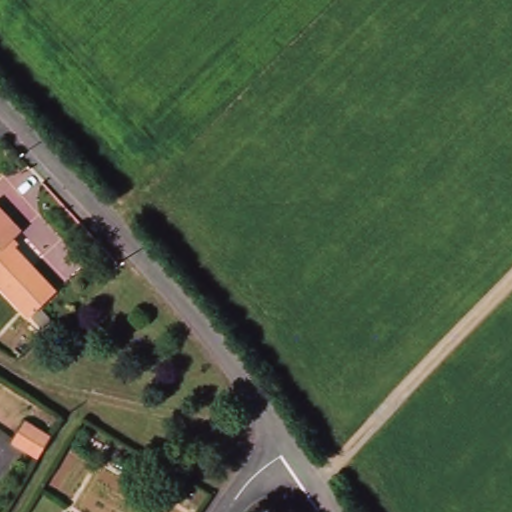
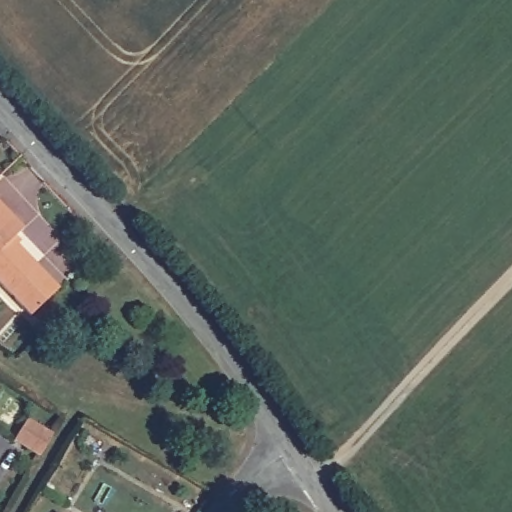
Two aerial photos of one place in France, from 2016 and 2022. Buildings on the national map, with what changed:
unchanged [(3,212),(11,205),(27,224),(12,238),(61,292),(34,316),(0,279),(0,208),(3,212)]

